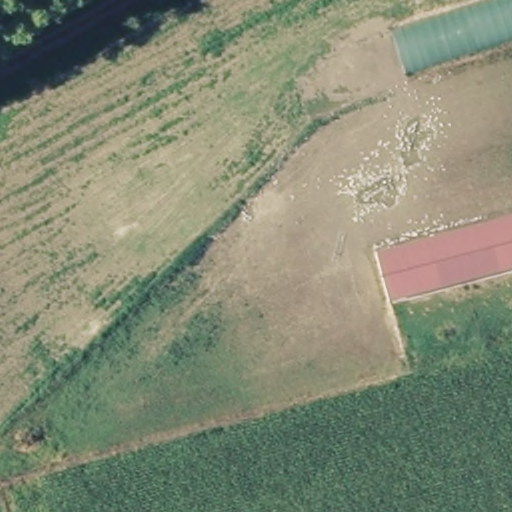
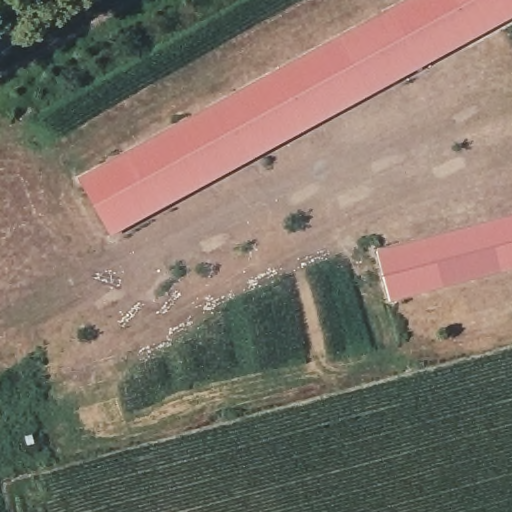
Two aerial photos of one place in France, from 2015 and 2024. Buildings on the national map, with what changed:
new [(79,180),(412,0),(512,0),(512,20),(110,239),(79,180)]
demolished [(512,0),(512,36),(406,70),(393,28),(480,0),(512,0)]
unchanged [(512,270),(392,302),(378,252),(512,218),(512,270)]

